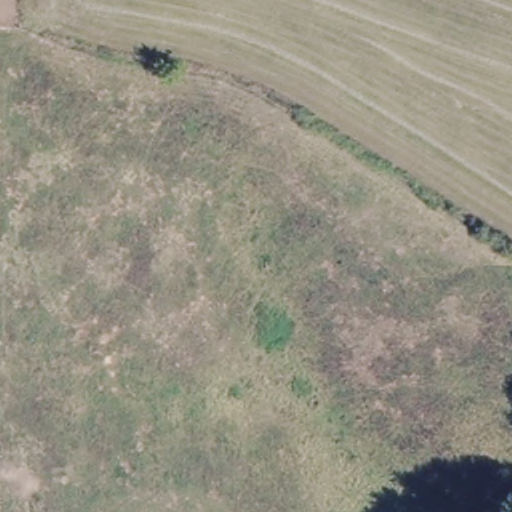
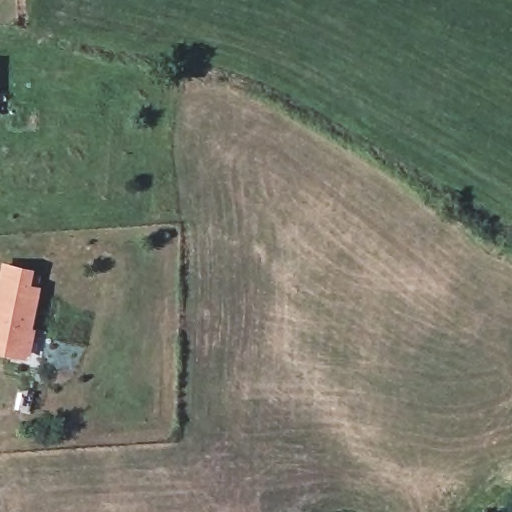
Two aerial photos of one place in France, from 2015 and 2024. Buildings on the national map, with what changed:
new [(36,269),(34,284),(44,288),(35,329),(38,329),(32,355),(30,354),(28,361),(0,355),(0,279),(4,263),(36,269)]
demolished [(19,453),(24,512),(0,512),(0,453),(19,453)]

